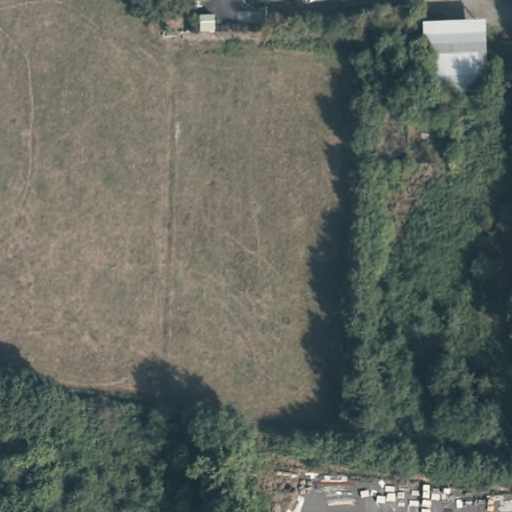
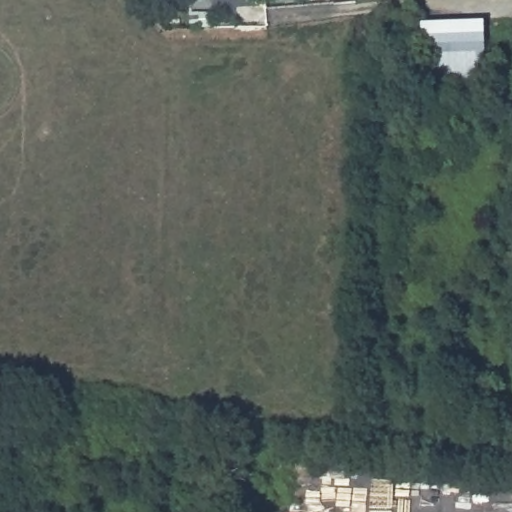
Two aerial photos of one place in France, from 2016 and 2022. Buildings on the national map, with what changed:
unchanged [(489,29),(490,79),(425,80),(424,30),(489,29)]

